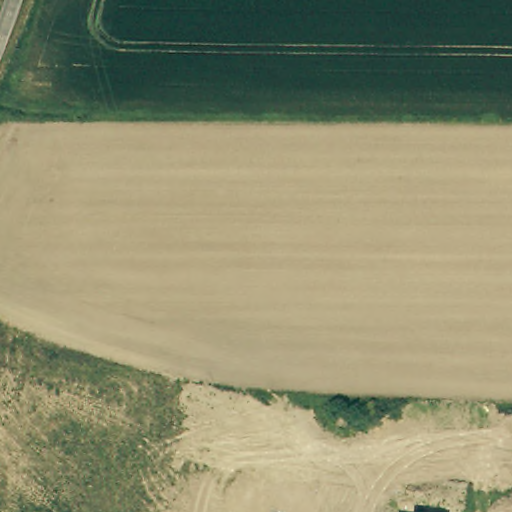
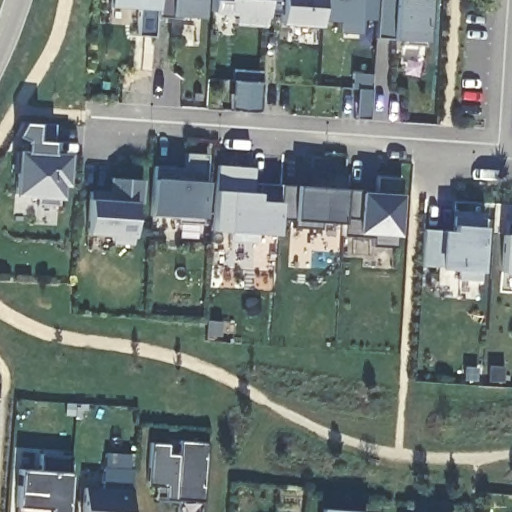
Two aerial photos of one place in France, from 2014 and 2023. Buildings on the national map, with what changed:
new [(182,15),(181,19),(156,17),(154,36),(138,36),(143,9),(108,7),(108,0),(202,0),(201,16),(182,15)]
new [(267,15),(266,25),(237,23),(240,14),(213,12),(213,0),(267,0),(267,13),(267,15)]
new [(282,14),(267,13),(267,0),(322,0),(321,21),(321,28),(290,26),(281,25),(281,23),(282,14)]
new [(358,19),(357,34),(337,33),(338,21),(321,21),(322,0),(378,0),(377,21),(358,19)]
new [(428,0),(425,46),(403,45),(403,40),(375,38),(377,21),(378,0),(428,0)]
new [(233,69),(263,71),(262,83),(260,113),(230,111),(232,81),(233,69)]
new [(352,89),(353,73),(373,75),(372,91),(370,121),(355,120),(357,90),(352,89)]
new [(56,153),(69,154),(67,186),(61,186),(61,199),(56,205),(36,204),(41,197),(13,196),(16,151),(29,151),(25,141),(15,136),(21,123),(51,125),(56,153)]
new [(205,182),(203,219),(200,225),(177,223),(177,218),(150,216),(154,178),(157,179),(154,166),(184,169),(186,154),(206,155),(205,182)]
new [(396,248),(373,246),(373,238),(342,235),(342,224),(323,223),(321,230),(294,228),(294,220),(277,219),(276,236),(255,234),(254,244),(229,242),(229,233),(231,191),(230,167),(252,169),(253,183),(296,187),(312,188),(312,173),(345,175),(344,191),(377,193),(378,177),(401,178),(396,248)]
new [(141,204),(136,204),(131,245),(113,244),(118,236),(87,235),(89,199),(89,191),(108,192),(109,178),(141,180),(141,204)]
new [(481,281),(458,280),(462,270),(439,268),(421,266),(424,229),(441,230),(453,230),(453,224),(454,215),(483,218),(481,281)]
new [(499,274),(502,234),(508,234),(505,220),(512,220),(512,274),(499,274)]
new [(203,502),(164,500),(165,486),(146,486),(150,444),(168,444),(166,455),(178,456),(179,442),(206,444),(203,502)]
new [(20,507),(15,506),(16,469),(42,471),(41,455),(70,457),(69,473),(67,512),(17,512),(20,507)]
new [(129,512),(81,512),(83,487),(101,488),(103,468),(131,470),(129,512)]
unchanged [(320,510),(365,512),(320,512),(320,510)]

